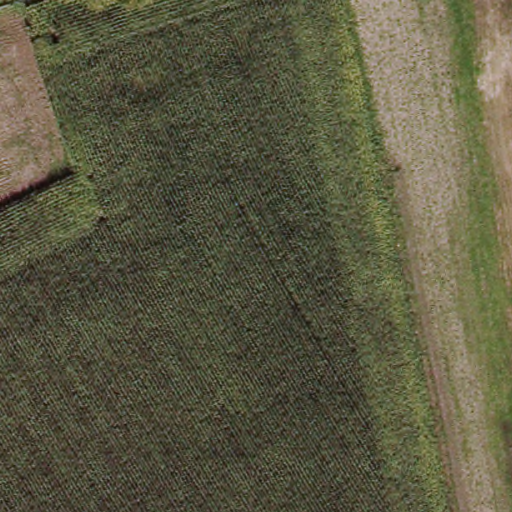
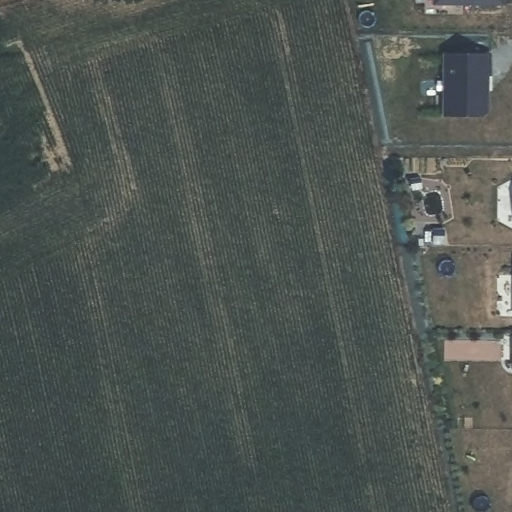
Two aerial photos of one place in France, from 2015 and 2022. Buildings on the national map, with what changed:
new [(434,0),(503,0),(503,2),(434,1),(434,0)]
new [(444,52),(489,53),(489,72),(487,72),(486,108),(480,113),(443,112),(444,52)]

